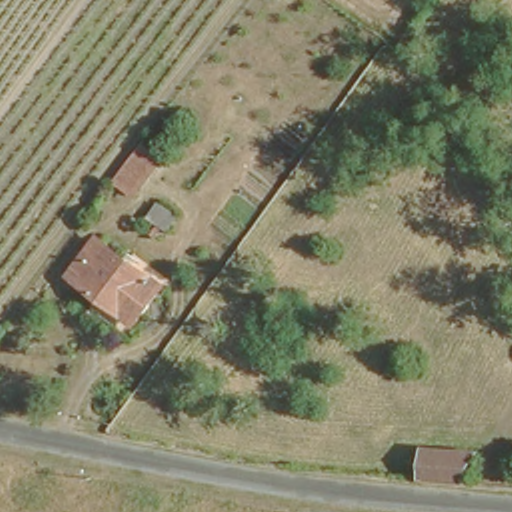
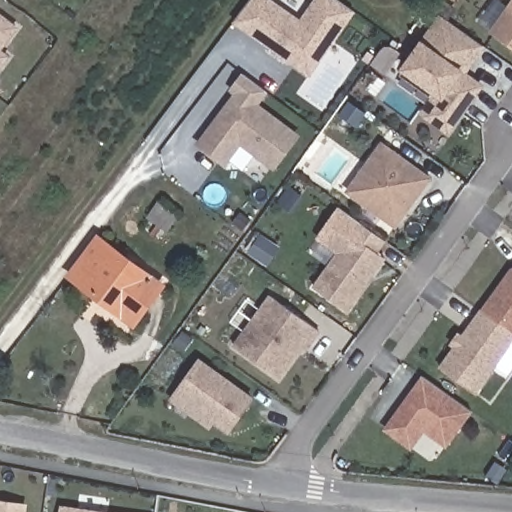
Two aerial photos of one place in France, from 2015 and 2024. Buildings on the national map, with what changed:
new [(339,0),(355,11),(310,77),(233,24),(250,0),(272,0),(299,19),(312,0),(339,0)]
new [(510,0),(512,0),(512,49),(488,31),(510,0)]
new [(18,27),(1,50),(9,57),(0,68),(0,14),(18,27)]
new [(399,70),(421,39),(438,14),(484,47),(467,72),(484,86),(448,136),(418,114),(429,98),(399,76),(402,73),(399,70)]
new [(300,136),(273,171),(239,146),(224,167),(194,145),(232,94),(228,91),(241,72),(267,92),(258,104),(300,136)]
new [(345,192),(381,141),(431,177),(395,227),(345,192)]
demolished [(139,142),(159,159),(139,185),(118,169),(139,142)]
new [(348,312),(312,287),(358,222),(385,241),(378,253),(385,260),(348,312)]
unchanged [(134,325),(122,317),(68,278),(96,240),(149,277),(162,286),(134,325)]
new [(458,330),(462,333),(509,267),(512,267),(512,344),(476,395),(438,367),(451,347),(448,345),(458,330)]
new [(281,378),(232,346),(267,294),(320,332),(306,352),(300,350),(281,378)]
new [(168,401),(198,358),(252,398),(228,433),(213,422),(208,429),(168,401)]
new [(410,451),(381,430),(421,375),(472,411),(445,447),(423,432),(410,451)]
demolished [(446,476),(425,473),(433,441),(454,443),(446,476)]
new [(28,502),(27,512),(0,512),(0,499),(28,502)]
new [(60,506),(107,512),(59,512),(60,506)]

